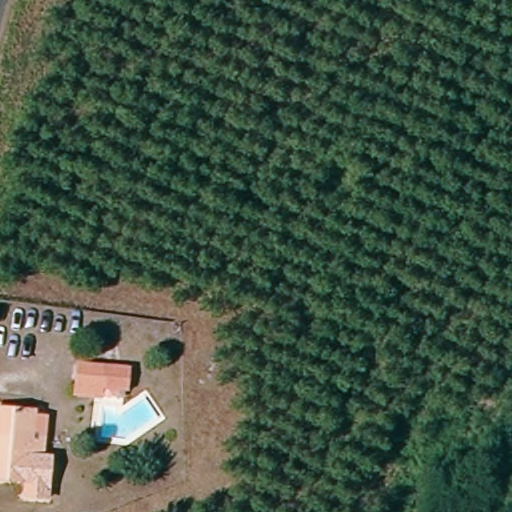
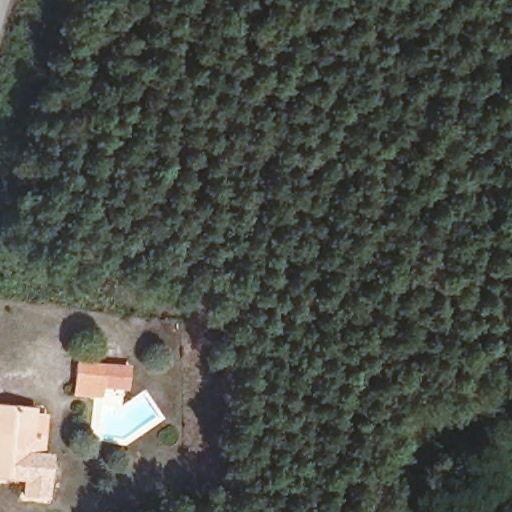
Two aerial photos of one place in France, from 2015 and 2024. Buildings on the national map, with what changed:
unchanged [(108,391),(105,402),(74,399),(75,361),(132,366),(132,393),(108,391)]
unchanged [(51,462),(45,497),(25,494),(27,483),(0,478),(0,405),(39,414),(33,451),(52,454),(51,462)]

